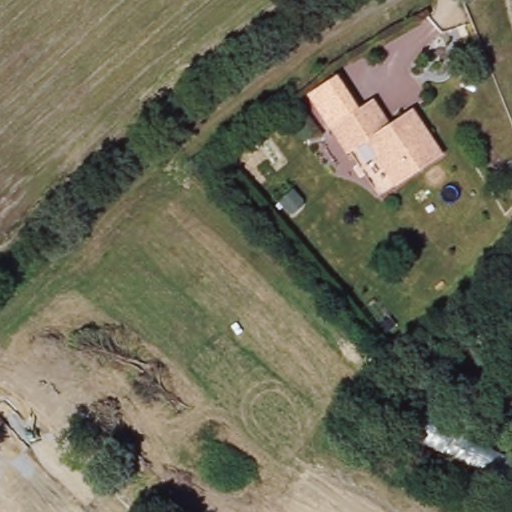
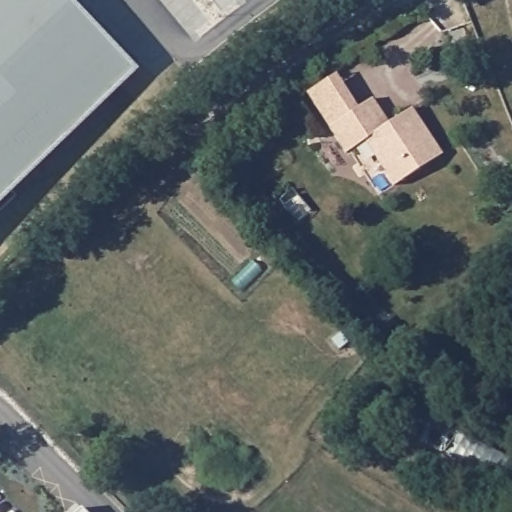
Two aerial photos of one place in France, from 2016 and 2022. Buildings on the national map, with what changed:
new [(0,189),(0,0),(61,0),(126,65),(0,189)]
unchanged [(350,149),(347,151),(329,125),(372,96),(390,121),(412,105),(443,151),(396,184),(375,153),(365,139),(350,149)]
unchanged [(511,315),(507,287),(512,280),(512,316),(511,315)]
unchanged [(511,388),(512,388),(512,390),(511,388)]
demolished [(406,437),(410,405),(512,457),(512,492),(406,437)]
new [(87,512),(76,512),(81,506),(87,512)]

